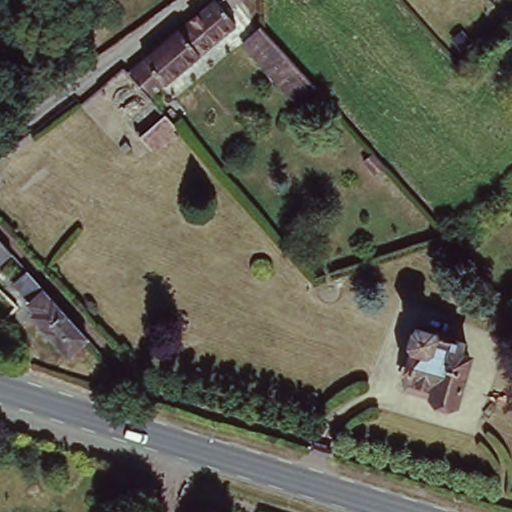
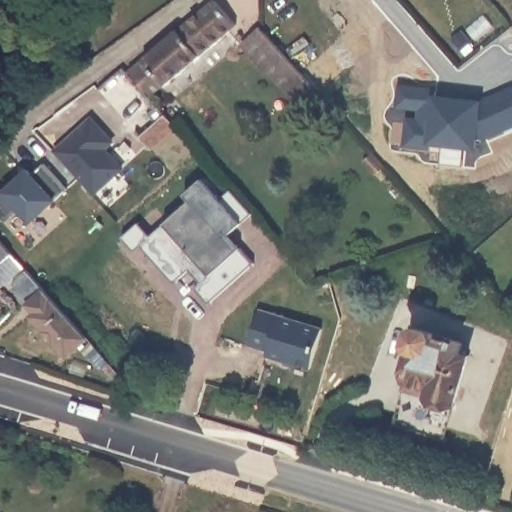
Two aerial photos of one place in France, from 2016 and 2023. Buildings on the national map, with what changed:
unchanged [(215,0),(222,0),(239,22),(155,93),(134,67),(215,0)]
unchanged [(315,84),(301,97),(272,64),(269,60),(283,48),(315,84)]
new [(432,89),(432,95),(476,100),(509,85),(512,90),(512,122),(482,135),(472,135),(471,145),(427,140),(427,145),(402,142),(405,117),(416,118),(417,106),(395,104),(396,85),(432,89)]
new [(90,117),(111,140),(103,147),(121,167),(92,193),(53,151),(90,117)]
new [(17,208),(3,220),(0,217),(0,187),(3,190),(26,169),(31,173),(42,163),(65,188),(28,220),(17,208)]
new [(184,205),(190,199),(184,193),(202,178),(210,187),(214,192),(224,183),(245,207),(222,228),(233,241),(254,262),(208,302),(194,286),(200,281),(188,268),(177,278),(174,282),(141,244),(135,250),(122,236),(139,221),(151,234),(184,205)]
unchanged [(10,250),(0,259),(0,238),(10,250)]
unchanged [(78,356),(56,332),(43,316),(45,312),(37,305),(39,302),(23,284),(36,272),(97,339),(78,356)]
new [(256,310),(319,329),(307,368),(264,355),(265,350),(246,344),(256,310)]
unchanged [(416,356),(408,354),(414,332),(433,338),(433,340),(474,353),(455,411),(403,395),(416,356)]
unchanged [(141,395),(160,401),(157,409),(139,403),(141,395)]

